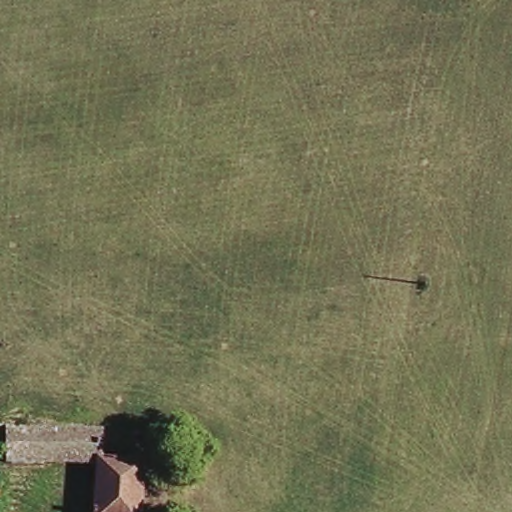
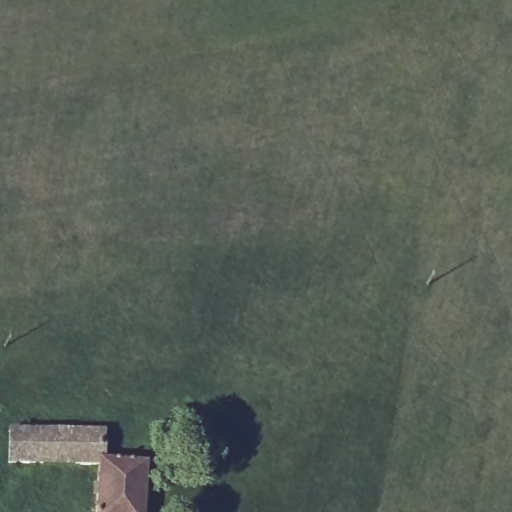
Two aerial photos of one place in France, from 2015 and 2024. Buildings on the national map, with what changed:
unchanged [(15,429),(103,430),(105,459),(146,461),(143,512),(94,512),(96,467),(14,465),(15,429)]

